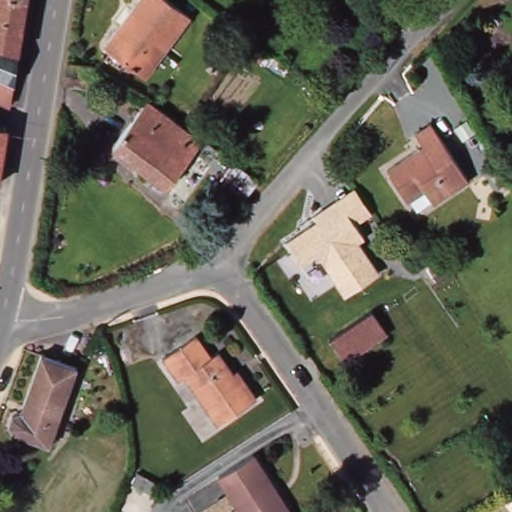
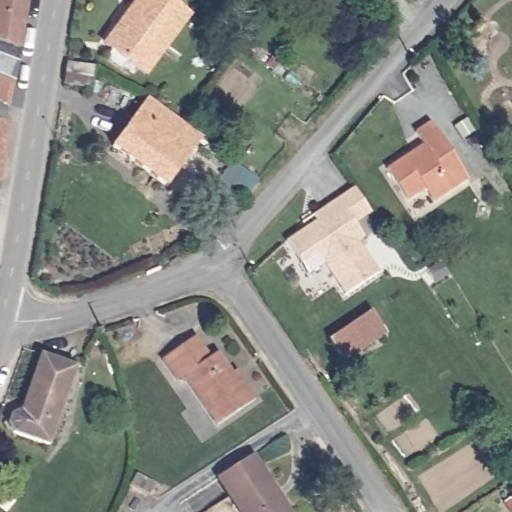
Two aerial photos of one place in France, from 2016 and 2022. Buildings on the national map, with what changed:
unchanged [(12,81),(0,77),(0,0),(26,0),(12,81)]
unchanged [(103,40),(135,0),(172,0),(188,12),(144,70),(103,40)]
unchanged [(66,58),(90,62),(90,65),(89,73),(87,81),(64,78),(66,58)]
unchanged [(107,139),(144,92),(174,114),(175,115),(159,136),(164,140),(145,166),(107,139)]
unchanged [(164,180),(145,166),(164,140),(159,136),(175,115),(198,132),(164,180)]
unchanged [(383,168),(422,144),(415,130),(430,120),(465,178),(425,202),(418,191),(403,200),(383,168)]
unchanged [(0,149),(0,121),(5,121),(0,149)]
unchanged [(244,191),(217,173),(230,156),(255,175),(244,191)]
unchanged [(371,213),(354,225),(365,240),(357,243),(378,274),(345,296),(316,257),(302,267),(284,242),(303,228),(300,223),(354,187),(371,213)]
unchanged [(385,327),(345,358),(326,335),(366,304),(385,327)]
unchanged [(196,330),(210,354),(219,349),(232,373),(240,370),(255,396),(214,423),(181,374),(175,377),(161,353),(196,330)]
unchanged [(12,429),(11,426),(10,423),(10,419),(10,415),(11,412),(15,409),(21,407),(38,351),(72,362),(47,443),(14,431),(12,429)]
unchanged [(291,512),(241,512),(219,477),(255,454),(291,512)]
unchanged [(130,464),(149,477),(142,487),(124,474),(130,464)]

